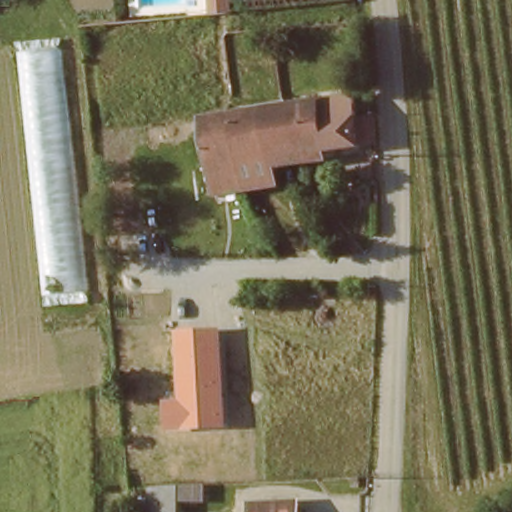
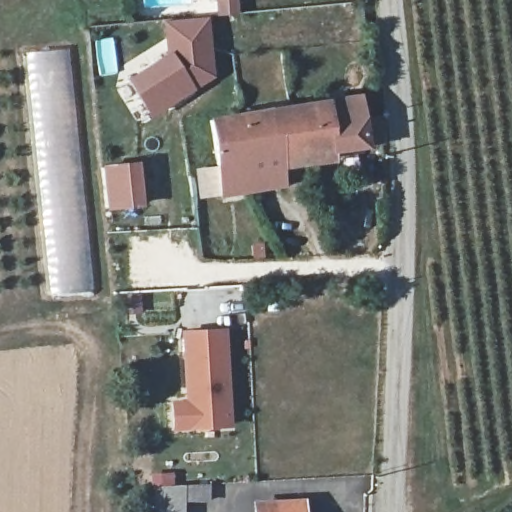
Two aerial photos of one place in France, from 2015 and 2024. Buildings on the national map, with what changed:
new [(170,53),(166,47),(164,22),(208,18),(215,78),(194,90),(150,117),(127,80),(170,53)]
unchanged [(49,300),(25,54),(69,49),(93,296),(49,300)]
unchanged [(380,127),(380,151),(330,156),(331,165),(281,172),(284,193),(218,201),(211,140),(208,117),(361,97),(365,124),(380,122),(380,127)]
demolished [(211,140),(155,150),(151,127),(208,117),(211,140)]
new [(102,166),(140,162),(145,207),(107,211),(102,166)]
unchanged [(232,428),(173,432),(170,400),(185,400),(181,331),(227,330),(232,428)]
unchanged [(212,503),(182,507),(182,512),(138,512),(137,492),(207,483),(212,503)]
unchanged [(249,505),(303,502),(303,512),(249,512),(249,505)]

